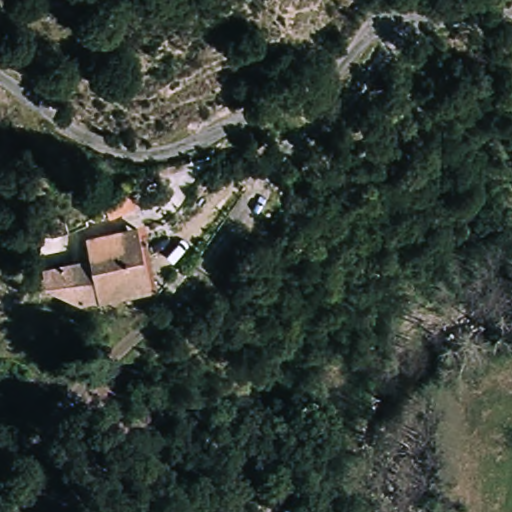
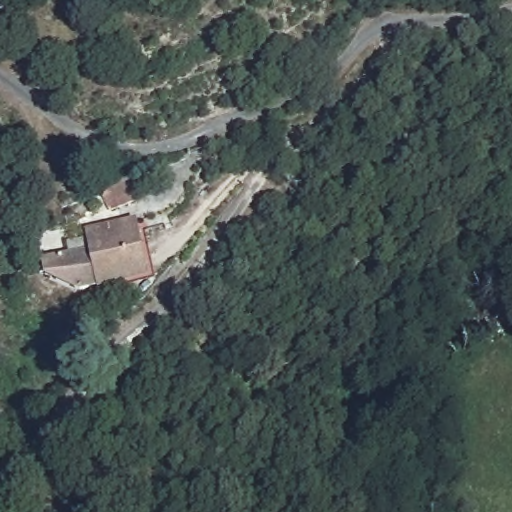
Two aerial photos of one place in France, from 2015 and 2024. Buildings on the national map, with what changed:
unchanged [(138,199),(115,206),(108,188),(131,181),(138,199)]
unchanged [(53,257),(102,244),(98,231),(142,220),(159,277),(117,288),(116,287),(110,280),(103,283),(93,287),(69,276),(59,273),(54,262),(53,257)]

